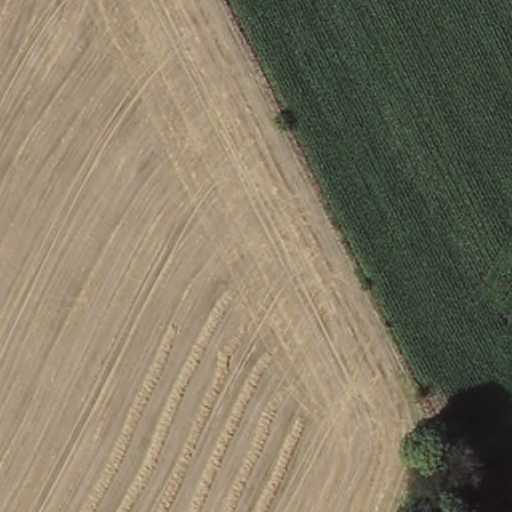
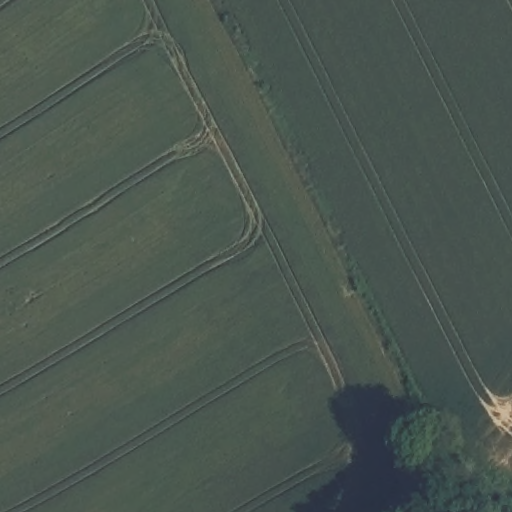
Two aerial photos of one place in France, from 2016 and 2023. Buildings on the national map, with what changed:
[]

